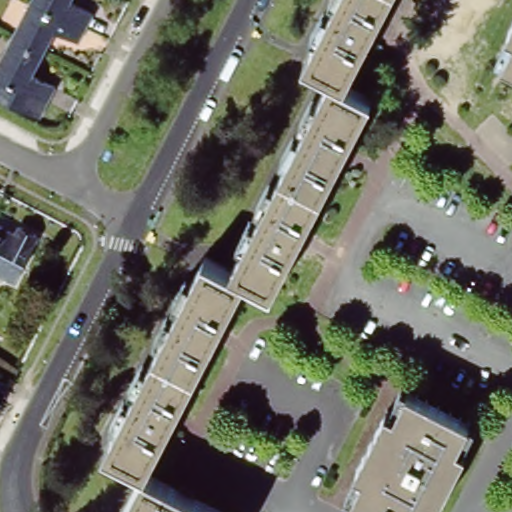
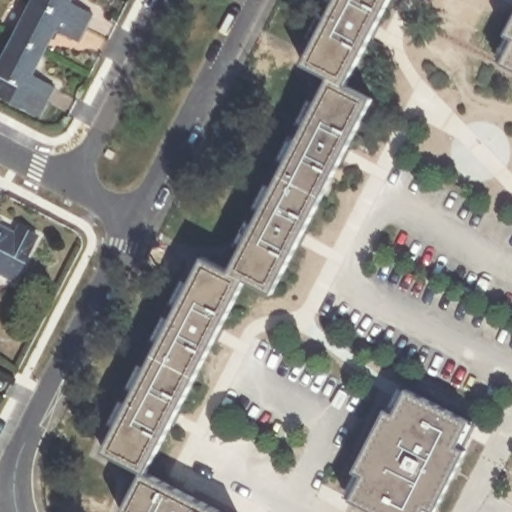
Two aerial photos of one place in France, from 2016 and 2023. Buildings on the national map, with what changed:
unchanged [(70,7),(93,19),(86,33),(32,6),(35,0),(73,0),(70,7)]
unchanged [(347,86),(374,100),(275,294),(248,280),(149,473),(223,512),(125,512),(145,472),(106,452),(205,259),(232,272),(332,79),(305,65),(338,0),(390,0),(347,86)]
unchanged [(12,42),(32,6),(86,33),(79,47),(55,35),(43,58),(12,42)]
unchanged [(512,29),(512,40),(507,38),(512,29)]
unchanged [(32,80),(55,92),(38,123),(0,103),(0,65),(12,42),(43,58),(32,80)]
unchanged [(512,53),(512,70),(505,67),(512,53)]
unchanged [(20,236),(24,229),(37,237),(14,282),(0,275),(0,225),(20,236)]
unchanged [(461,451),(470,456),(441,512),(430,512),(370,512),(355,505),(367,481),(358,476),(390,415),(398,419),(411,395),(472,427),(461,451)]

